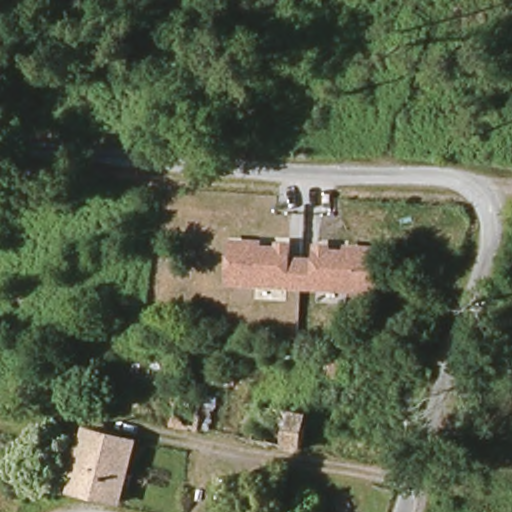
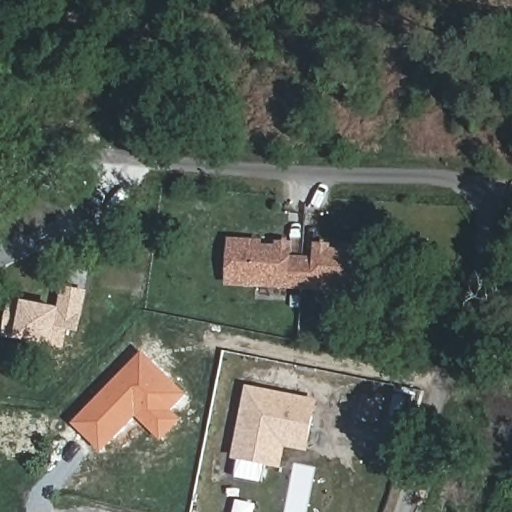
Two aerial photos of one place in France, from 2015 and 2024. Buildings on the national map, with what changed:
unchanged [(382,288),(233,277),(236,237),(263,238),(262,243),(293,246),(292,256),(321,258),(322,248),(351,250),(352,245),(385,247),(382,288)]
new [(59,308),(61,291),(67,292),(69,288),(88,292),(80,332),(69,330),(65,349),(5,337),(12,299),(59,308)]
new [(144,350),(188,395),(174,410),(182,419),(161,441),(137,416),(102,452),(72,424),(144,350)]
new [(246,385),(318,399),(308,451),(286,448),(281,468),(232,459),(246,385)]
demolished [(209,406),(202,433),(179,427),(185,400),(209,406)]
demolished [(305,412),(298,449),(247,438),(255,402),(305,412)]
demolished [(136,438),(121,498),(71,485),(86,425),(136,438)]

